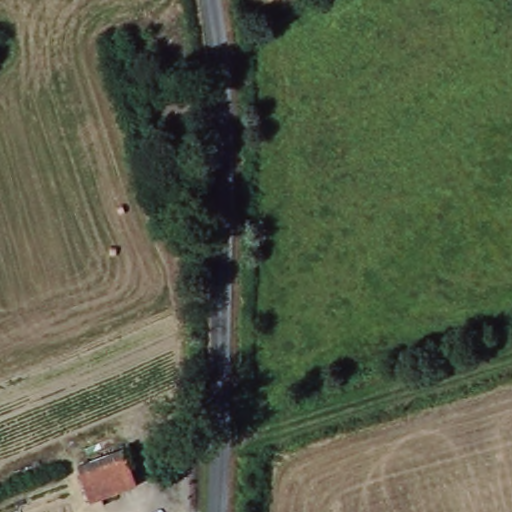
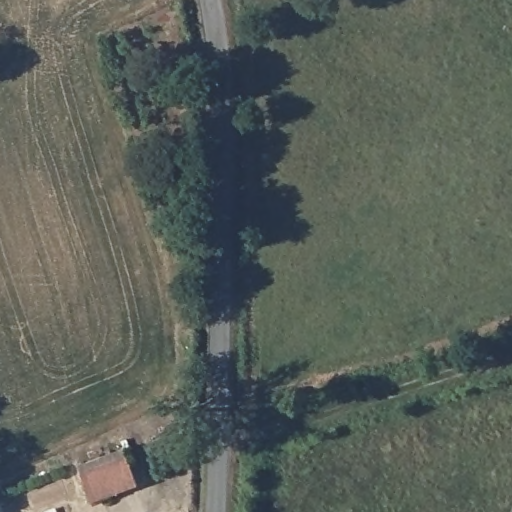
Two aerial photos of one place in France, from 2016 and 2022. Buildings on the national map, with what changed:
unchanged [(95,502),(85,474),(82,466),(129,448),(132,457),(142,484),(95,502)]

